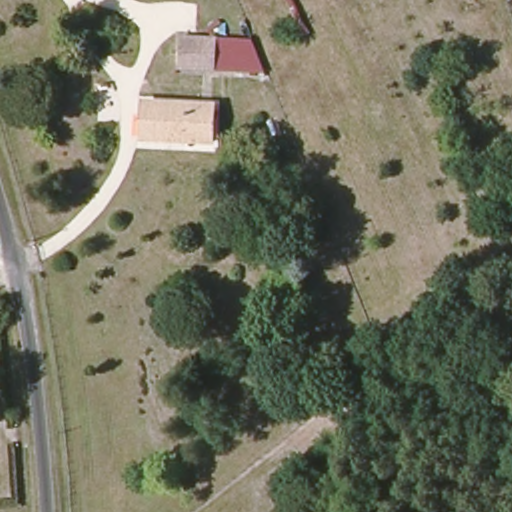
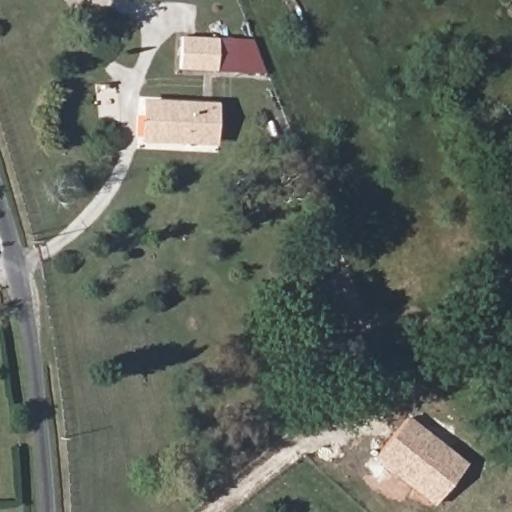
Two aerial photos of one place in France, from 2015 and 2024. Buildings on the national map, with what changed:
unchanged [(255,40),(265,71),(181,69),(179,34),(255,40)]
unchanged [(142,110),(142,95),(210,100),(209,136),(159,133),(141,132),(142,110)]
new [(467,465),(437,506),(376,460),(407,420),(467,465)]

